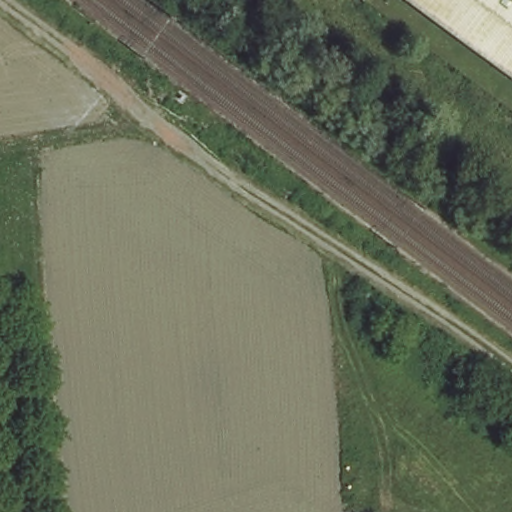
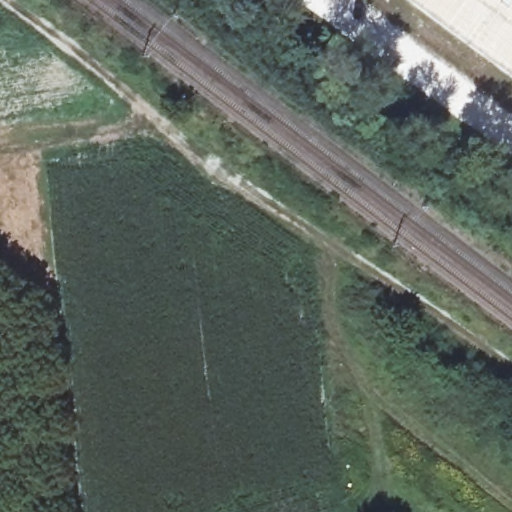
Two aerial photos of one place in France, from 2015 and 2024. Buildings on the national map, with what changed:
unchanged [(406,0),(512,0),(512,80),(406,0)]

